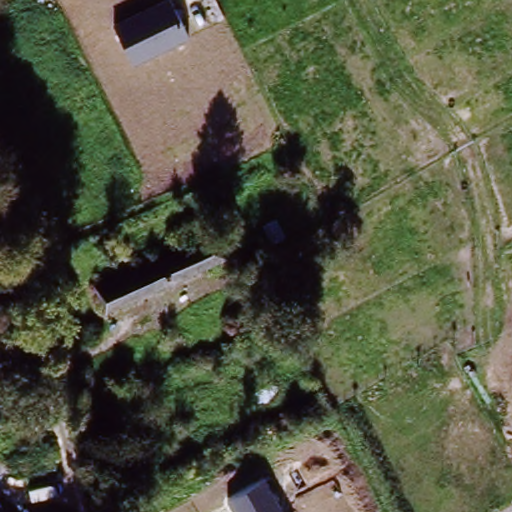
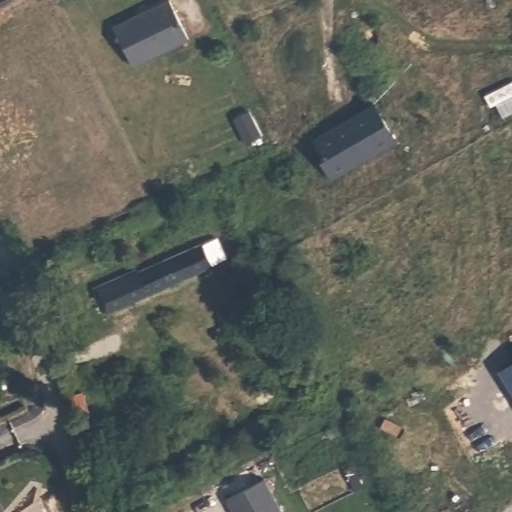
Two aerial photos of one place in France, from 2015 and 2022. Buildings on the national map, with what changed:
unchanged [(171,0),(188,39),(133,63),(116,25),(171,0)]
new [(333,180),(311,140),(377,104),(399,144),(333,180)]
unchanged [(228,227),(240,255),(117,310),(105,282),(228,227)]
new [(512,393),(499,372),(512,364),(512,393)]
unchanged [(266,480),(284,512),(234,512),(228,500),(266,480)]
unchanged [(5,512),(0,512),(0,505),(5,512)]

